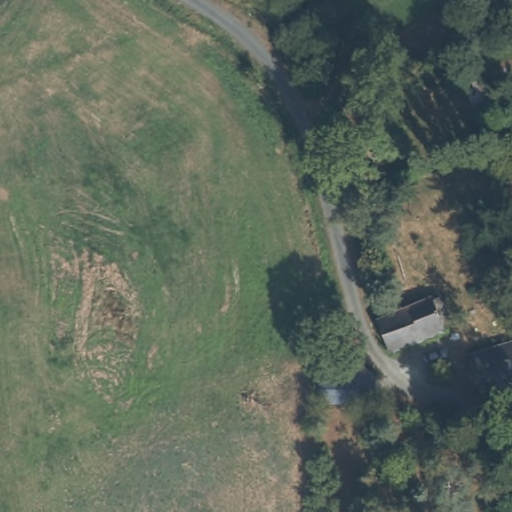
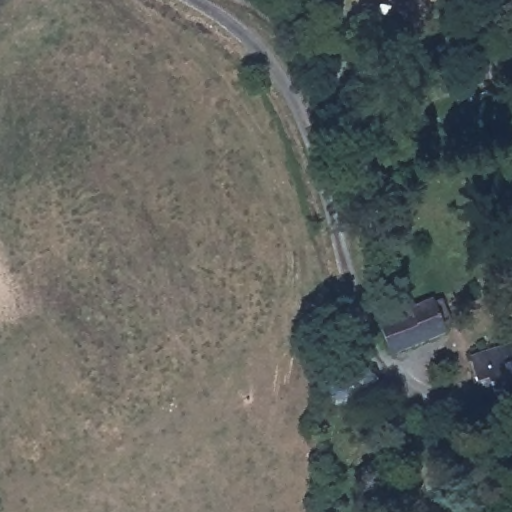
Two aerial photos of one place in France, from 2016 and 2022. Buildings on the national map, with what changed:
unchanged [(500,117),(477,129),(455,72),(512,47),(512,88),(492,96),(500,117)]
unchanged [(388,358),(372,326),(426,300),(430,305),(439,299),(444,310),(451,325),(442,330),(443,331),(388,358)]
unchanged [(488,389),(472,395),(466,370),(480,366),(478,355),(512,343),(512,395),(491,401),(488,389)]
unchanged [(329,366),(328,376),(361,376),(372,393),(373,415),(319,416),(318,367),(329,366)]

